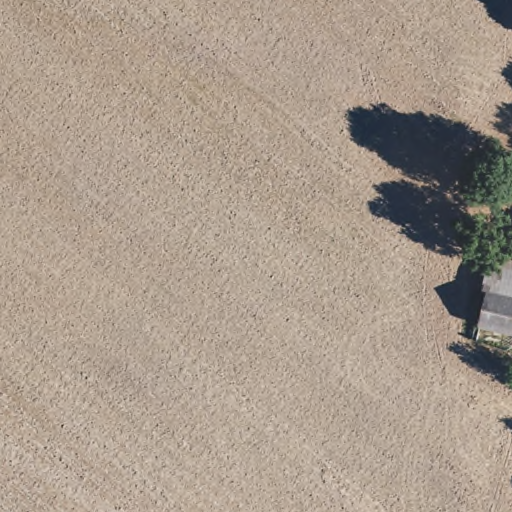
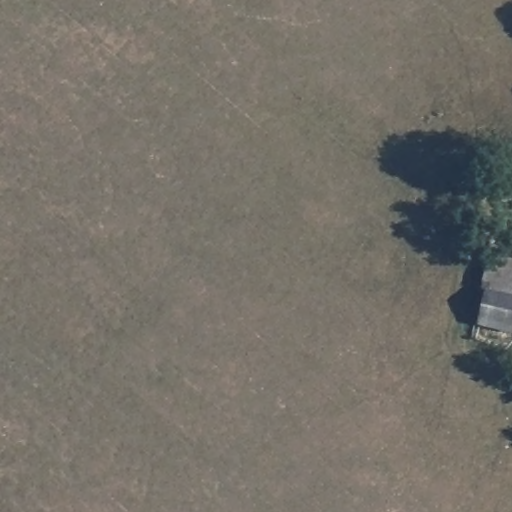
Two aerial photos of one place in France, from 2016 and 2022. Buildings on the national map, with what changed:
unchanged [(485,291),(481,290),(488,257),(512,262),(512,298),(485,291)]
unchanged [(512,298),(512,331),(475,321),(485,291),(512,298)]

